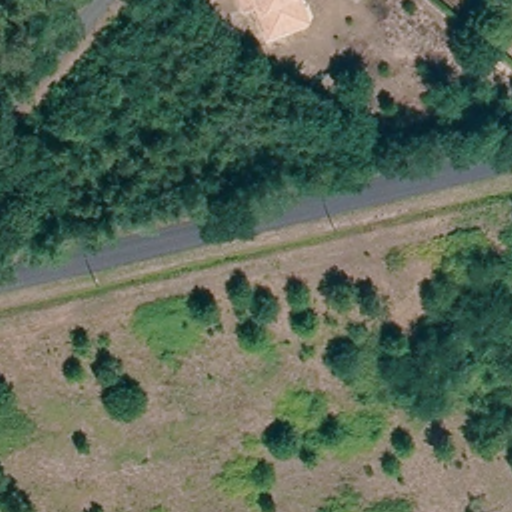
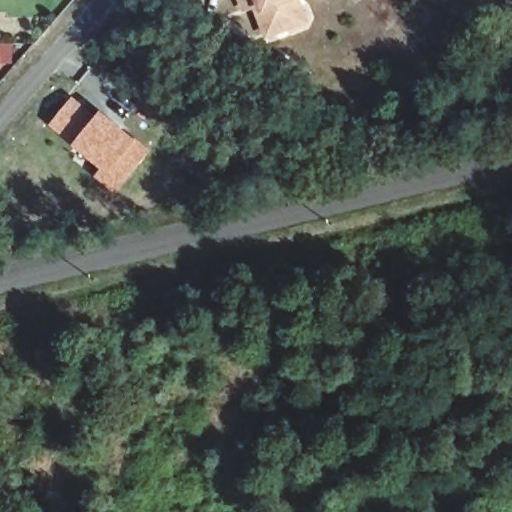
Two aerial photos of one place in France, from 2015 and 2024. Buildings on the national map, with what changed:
unchanged [(283,26),(264,34),(252,3),(241,8),(238,0),(294,0),(297,6),(302,19),(283,26)]
new [(73,94),(95,114),(71,143),(48,123),(73,94)]
new [(95,114),(101,107),(152,148),(115,193),(94,176),(100,167),(71,143),(95,114)]

